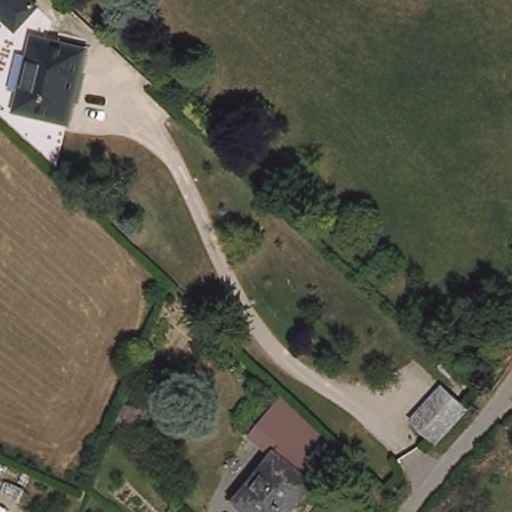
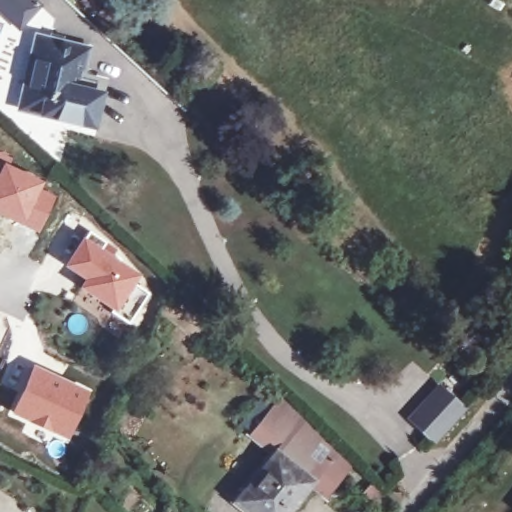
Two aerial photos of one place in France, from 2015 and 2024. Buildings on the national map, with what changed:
unchanged [(32,0),(40,7),(17,33),(0,17),(0,0),(32,0)]
unchanged [(88,49),(76,120),(25,112),(38,40),(88,49)]
new [(10,163),(45,181),(42,187),(57,195),(40,235),(0,215),(0,151),(13,157),(10,163)]
new [(90,236),(107,247),(101,257),(137,278),(132,285),(150,296),(130,326),(112,315),(115,311),(84,291),(90,282),(69,270),(90,236)]
new [(33,364),(92,391),(67,442),(10,415),(33,364)]
unchanged [(465,405),(435,440),(413,419),(443,383),(465,405)]
unchanged [(338,456),(318,487),(297,512),(246,512),(232,498),(269,456),(245,436),(285,397),(338,456)]

